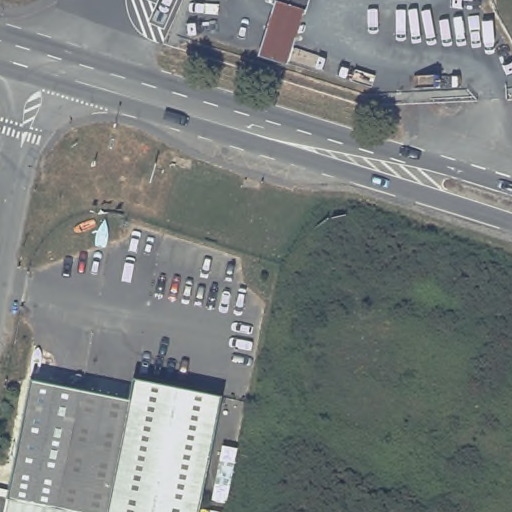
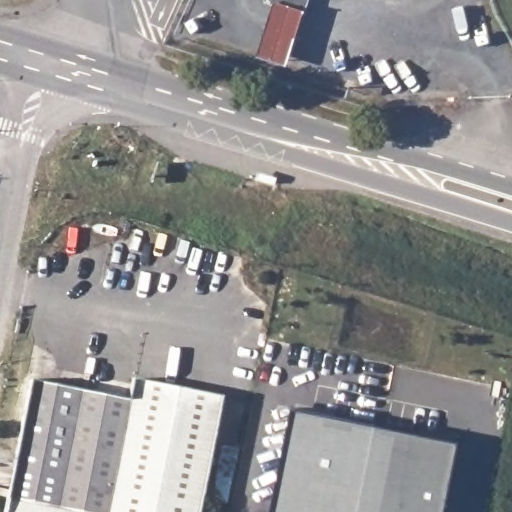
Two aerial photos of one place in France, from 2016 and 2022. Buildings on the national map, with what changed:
unchanged [(308,0),(305,10),(275,1),(274,0),(308,0)]
unchanged [(288,62),(259,53),(275,1),(305,10),(288,62)]
unchanged [(128,400),(132,378),(222,397),(198,512),(105,512),(128,400)]
unchanged [(128,400),(105,512),(79,512),(63,506),(6,494),(29,380),(128,400)]
new [(293,407),(461,441),(446,512),(272,512),(293,407)]
unchanged [(63,506),(79,512),(3,512),(6,494),(63,506)]

